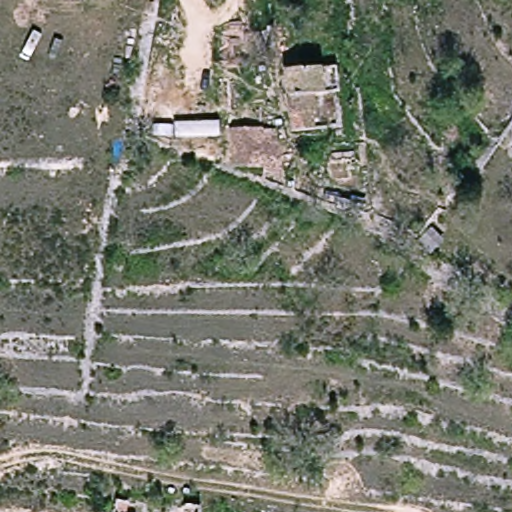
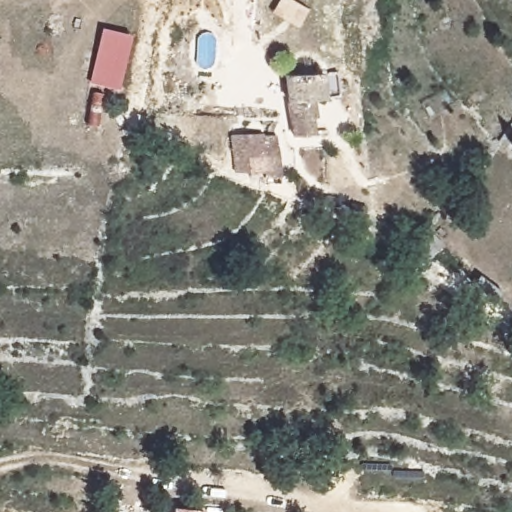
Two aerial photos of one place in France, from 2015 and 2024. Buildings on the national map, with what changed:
new [(100,28),(130,36),(118,90),(88,82),(100,28)]
unchanged [(282,74),(328,71),(328,100),(311,101),(311,138),(287,139),(282,74)]
unchanged [(224,136),(275,135),(275,176),(225,174),(224,136)]
new [(170,506),(202,508),(202,512),(170,512),(170,506)]

